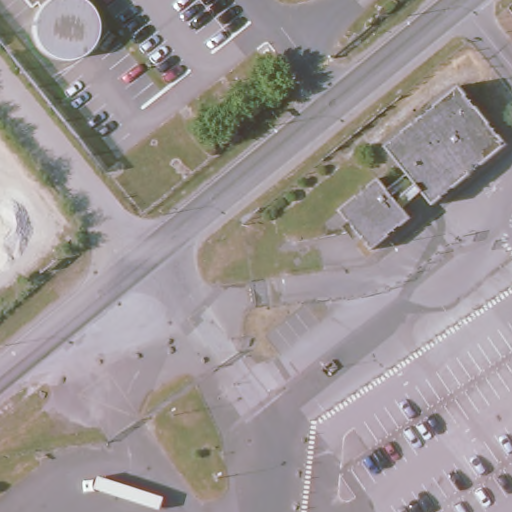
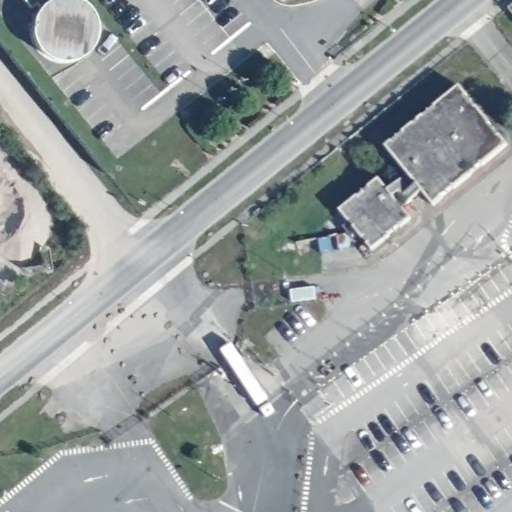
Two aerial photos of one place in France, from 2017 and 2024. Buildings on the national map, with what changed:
unchanged [(28,8),(21,0),(39,0),(28,8)]
unchanged [(387,185),(408,169),(387,142),(462,80),(510,139),(434,200),(423,187),(401,204),(408,214),(370,244),(340,205),(377,174),(387,185)]

